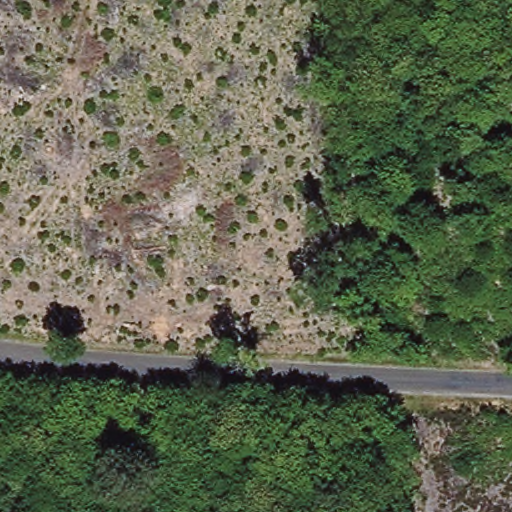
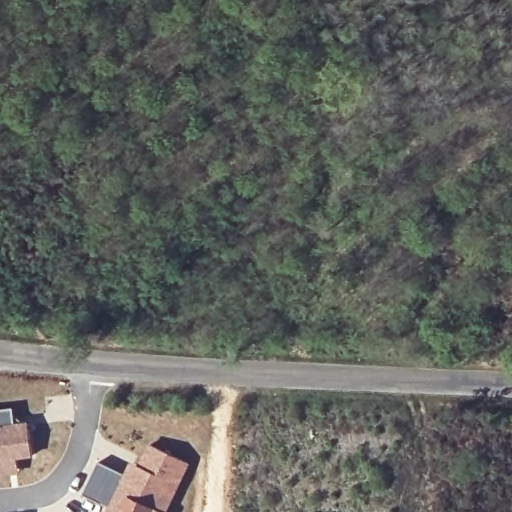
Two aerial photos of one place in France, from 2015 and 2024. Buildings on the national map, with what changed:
new [(14,407),(16,422),(29,421),(32,458),(17,460),(19,475),(0,477),(0,408),(14,407)]
new [(107,508),(124,473),(130,460),(137,463),(147,443),(190,463),(169,512),(113,512),(107,508)]
new [(97,461),(124,473),(107,508),(82,494),(97,461)]

